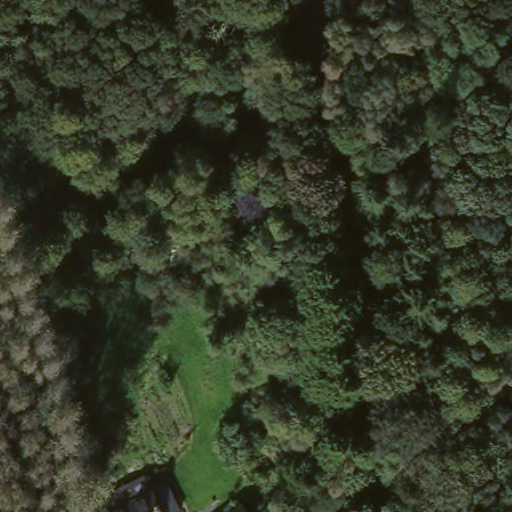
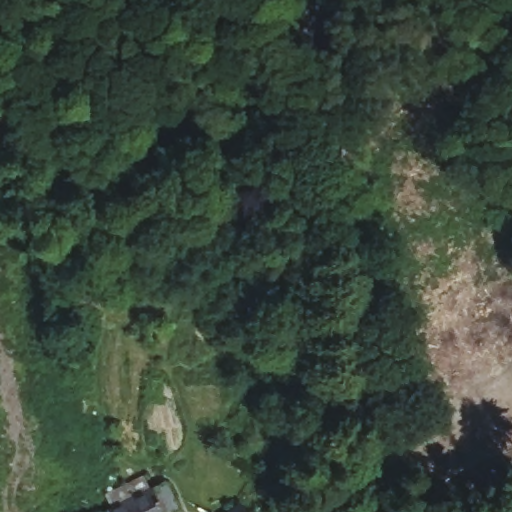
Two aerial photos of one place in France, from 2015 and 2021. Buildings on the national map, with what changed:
unchanged [(132,479),(142,494),(158,487),(165,501),(171,512),(102,512),(98,497),(132,479)]
unchanged [(238,512),(224,512),(233,505),(238,512)]

